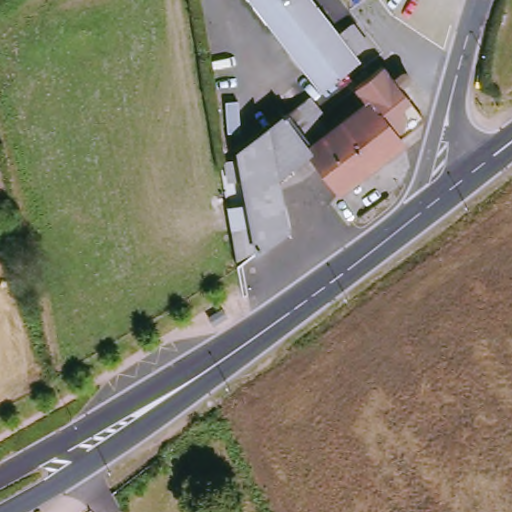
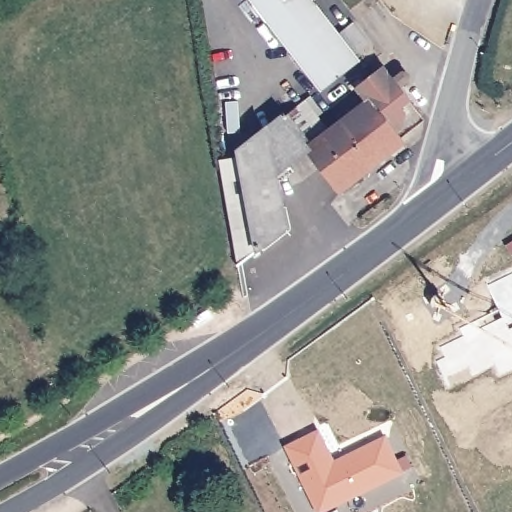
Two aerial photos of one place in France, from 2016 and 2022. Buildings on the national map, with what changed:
unchanged [(355,52),(359,57),(320,87),(253,0),(315,0),(339,31),(352,21),(368,41),(355,52)]
unchanged [(400,137),(401,138),(338,188),(334,182),(308,147),(328,131),(368,100),(363,93),(378,81),(389,72),(395,80),(424,118),(400,137)]
unchanged [(308,147),(276,172),(287,227),(236,265),(231,230),(254,225),(245,177),(228,180),(226,160),(241,158),(239,150),(303,100),(321,124),(327,130),(328,131),(308,147)]
new [(311,426),(329,460),(344,452),(343,449),(378,431),(395,466),(314,507),(281,442),(311,426)]

